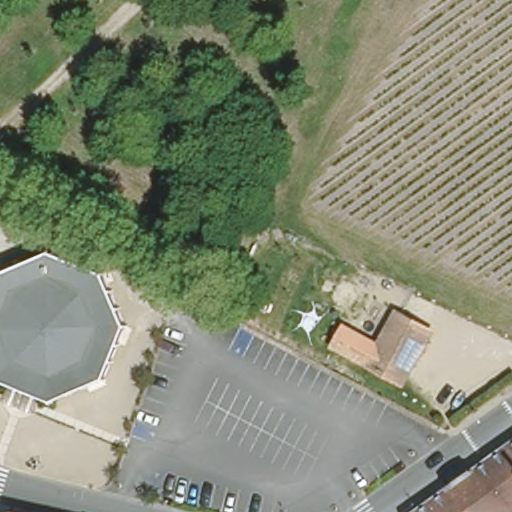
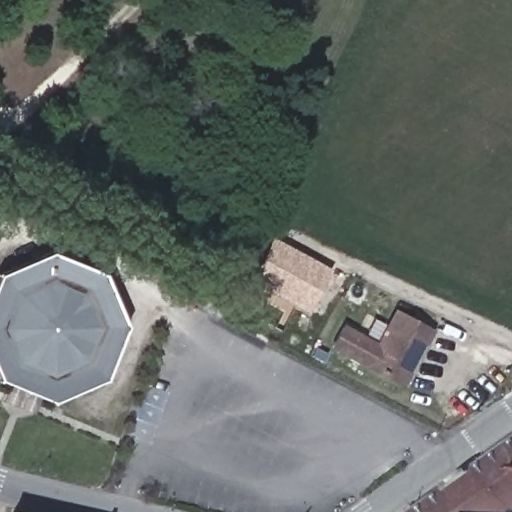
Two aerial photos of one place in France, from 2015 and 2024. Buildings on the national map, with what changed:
new [(329,268),(305,311),(248,280),(271,237),(329,268)]
unchanged [(102,380),(48,403),(0,384),(0,272),(47,255),(97,277),(125,321),(102,380)]
unchanged [(365,362),(391,312),(427,330),(401,381),(365,362)]
unchanged [(449,485),(448,483),(471,467),(472,468),(512,441),(512,510),(509,512),(411,512),(449,485)]

